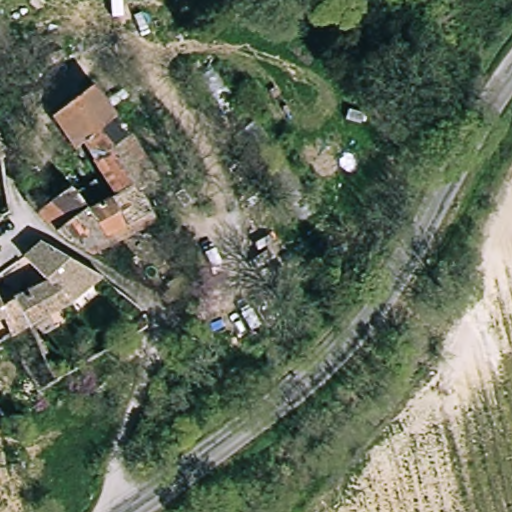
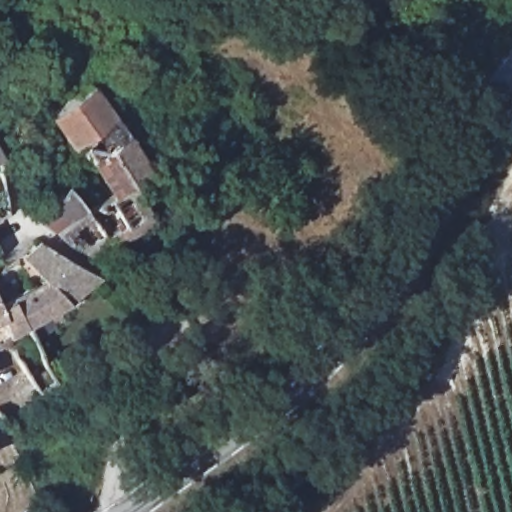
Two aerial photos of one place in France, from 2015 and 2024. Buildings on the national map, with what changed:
unchanged [(81,142),(71,148),(53,116),(92,83),(152,179),(136,189),(156,221),(90,254),(69,240),(51,227),(35,212),(69,187),(75,194),(99,173),(81,142)]
unchanged [(49,285),(23,261),(35,249),(41,244),(46,247),(97,279),(67,306),(49,285)]
unchanged [(182,306),(167,296),(175,289),(172,283),(192,272),(208,297),(182,306)]
unchanged [(15,301),(34,292),(49,285),(67,306),(27,327),(15,301)]
unchanged [(15,301),(27,327),(0,341),(0,308),(15,301)]

